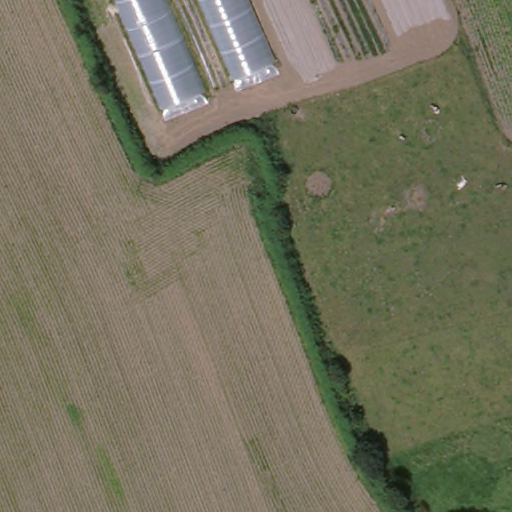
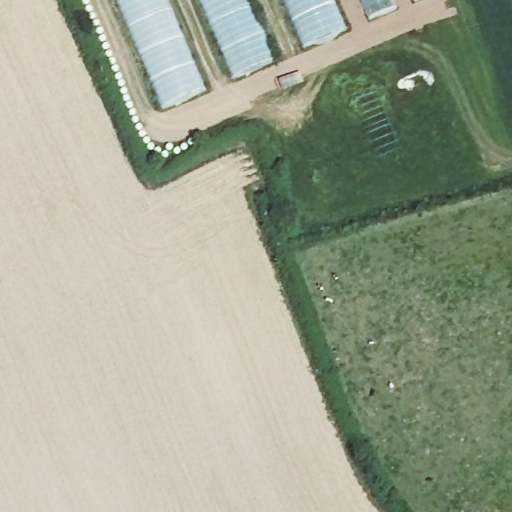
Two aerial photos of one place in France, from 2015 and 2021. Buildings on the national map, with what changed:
unchanged [(164,117),(115,0),(166,0),(209,99),(164,117)]
unchanged [(239,90),(199,0),(251,0),(281,71),(239,90)]
new [(283,0),(331,0),(348,42),(308,58),(283,0)]

